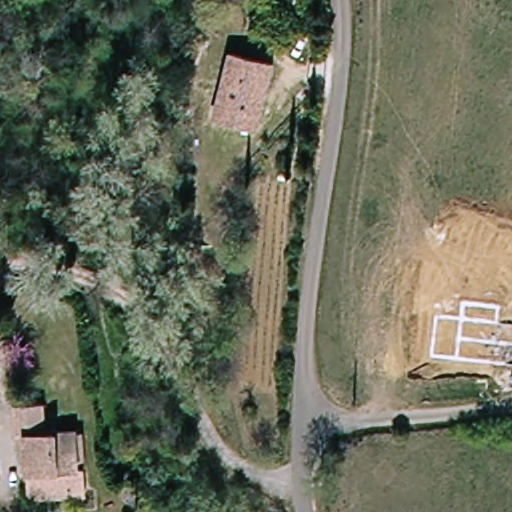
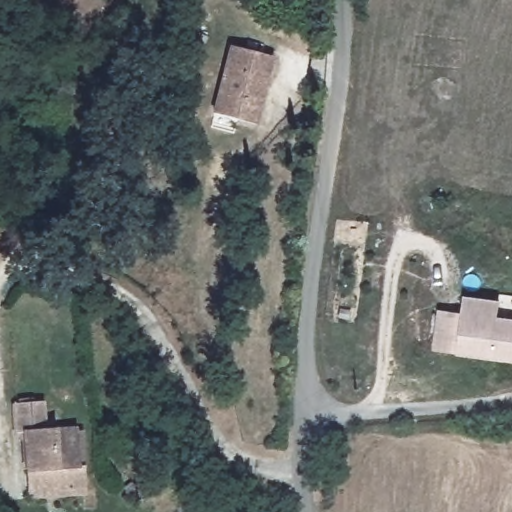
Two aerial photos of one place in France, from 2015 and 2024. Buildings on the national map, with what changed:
unchanged [(275,60),(260,130),(220,121),(236,51),(275,60)]
new [(435,352),(438,310),(460,314),(462,297),(500,300),(497,318),(512,319),(512,360),(456,354),(435,352)]
demolished [(506,305),(512,306),(512,360),(497,359),(506,305)]
unchanged [(32,474),(33,439),(25,439),(26,407),(53,408),(53,438),(82,438),(82,474),(87,474),(86,499),(73,499),(32,499),(32,474)]

